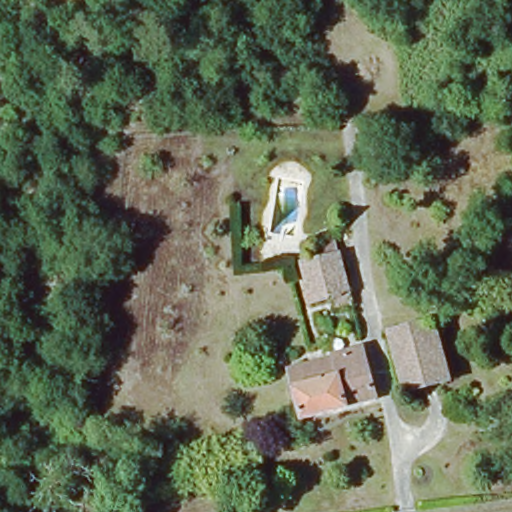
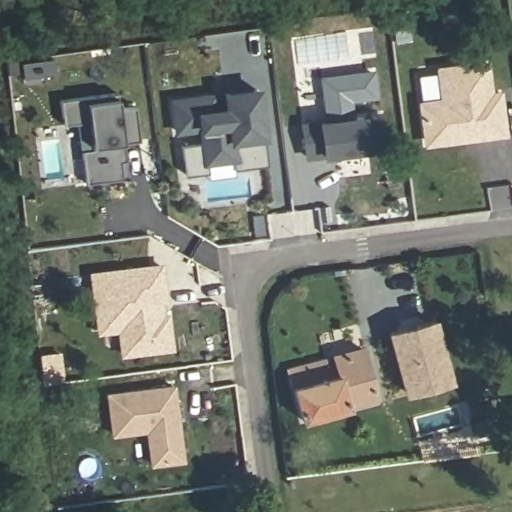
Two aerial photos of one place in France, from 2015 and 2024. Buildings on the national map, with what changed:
new [(441,99),(437,67),(484,61),(488,93),(497,92),(502,132),(471,136),(471,133),(423,139),(419,101),(441,99)]
new [(350,102),(352,116),(323,120),(316,76),(372,69),(375,98),(350,102)]
new [(207,93),(210,108),(221,106),(219,91),(251,87),(261,161),(229,165),(228,156),(200,159),(202,168),(180,171),(176,143),(197,140),(195,125),(171,128),(167,98),(207,93)]
new [(118,180),(82,185),(77,152),(89,151),(85,123),(60,126),(56,102),(113,95),(115,110),(131,108),(136,142),(120,144),(122,163),(124,180),(118,180)]
new [(377,113),(381,145),(305,155),(300,123),(377,113)]
demolished [(299,265),(335,255),(344,293),(309,302),(299,265)]
new [(160,300),(161,310),(166,348),(118,354),(114,329),(95,331),(90,294),(87,273),(101,272),(156,266),(160,300)]
unchanged [(391,334),(435,321),(451,380),(407,391),(391,334)]
unchanged [(286,370),(358,349),(372,399),(299,418),(286,370)]
new [(170,385),(180,459),(149,463),(145,429),(110,433),(105,393),(170,385)]

